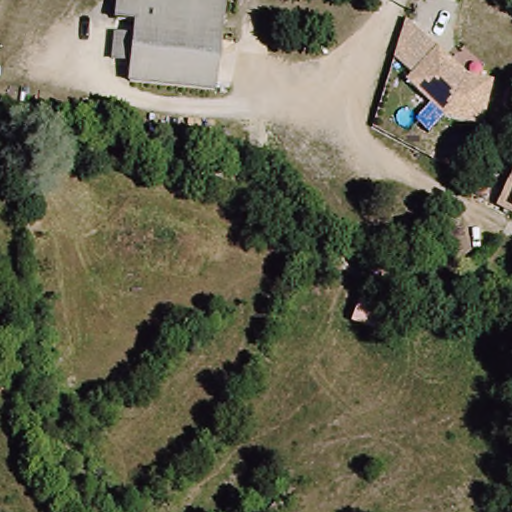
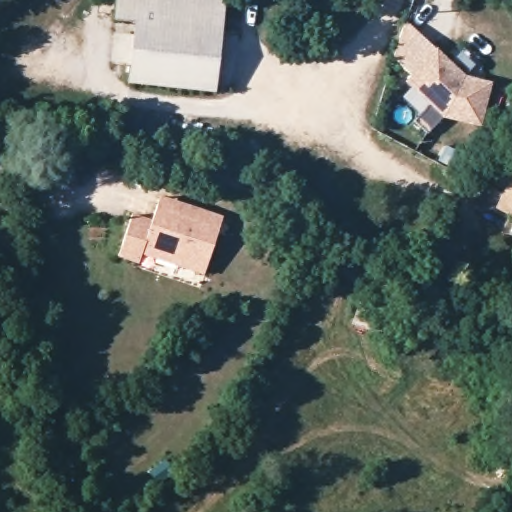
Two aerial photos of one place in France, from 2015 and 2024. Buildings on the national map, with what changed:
unchanged [(142,40),(143,21),(121,18),(123,0),(225,0),(217,86),(139,79),(141,64),(120,63),(122,39),(142,40)]
unchanged [(436,47),(453,60),(464,47),(486,67),(478,76),(489,81),(479,126),(443,118),(407,79),(436,47)]
unchanged [(510,161),(502,177),(494,173),(503,158),(510,161)]
unchanged [(512,181),(512,213),(499,207),(512,181)]
unchanged [(497,186),(488,202),(482,198),(490,183),(497,186)]
new [(223,215),(205,274),(142,254),(139,263),(119,255),(133,214),(152,219),(159,195),(223,215)]

